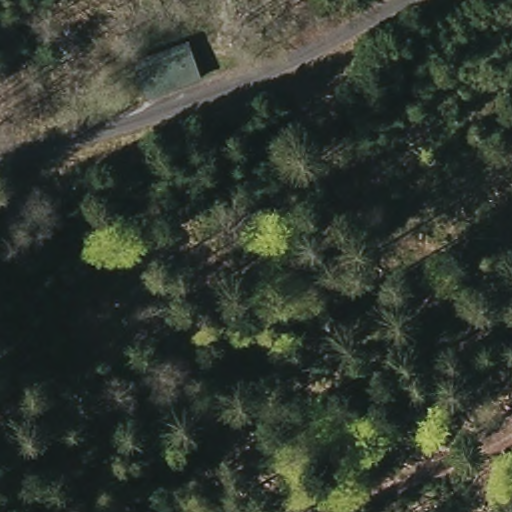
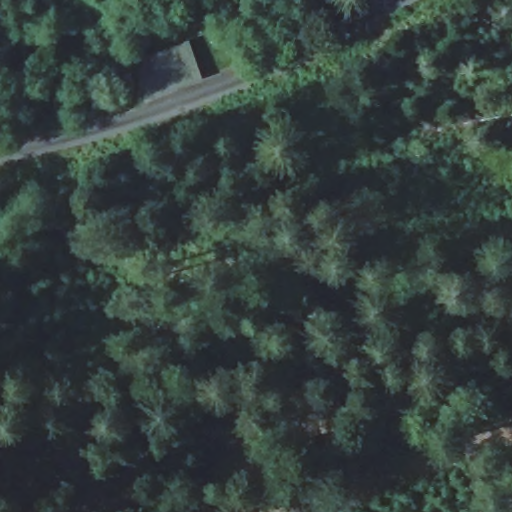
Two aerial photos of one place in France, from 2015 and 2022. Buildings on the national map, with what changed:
unchanged [(192,30),(207,68),(147,92),(132,56),(192,30)]

